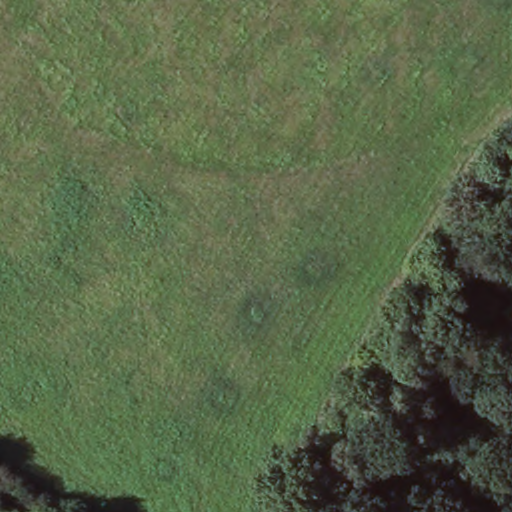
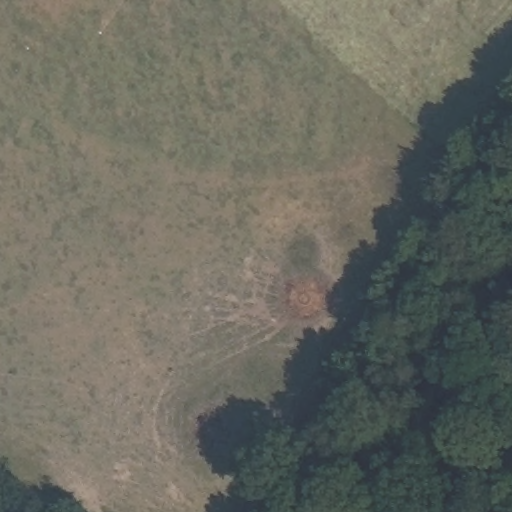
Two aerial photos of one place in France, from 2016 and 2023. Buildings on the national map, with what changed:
[]

